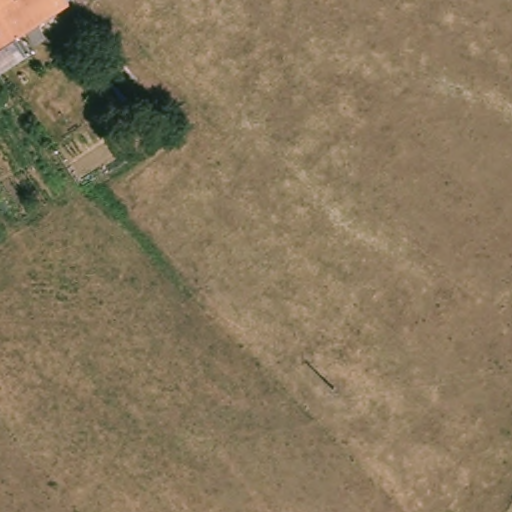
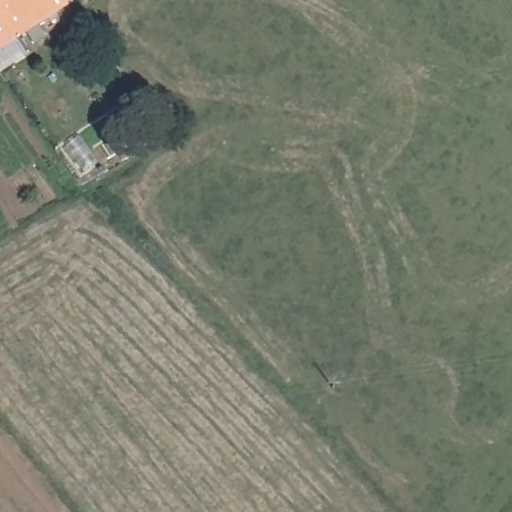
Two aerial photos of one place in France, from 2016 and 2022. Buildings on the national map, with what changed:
unchanged [(71,4),(0,50),(0,0),(69,0),(71,4)]

